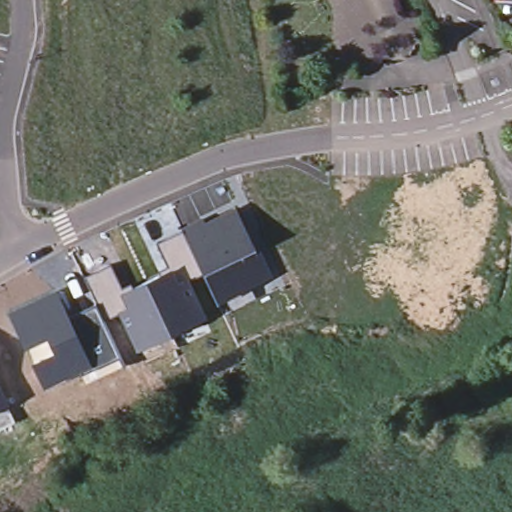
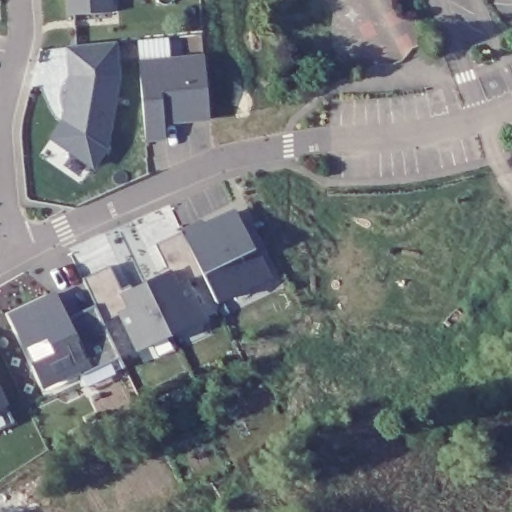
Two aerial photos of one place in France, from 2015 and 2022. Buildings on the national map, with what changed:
new [(112,11),(68,14),(68,0),(112,0),(112,11)]
new [(121,76),(109,148),(94,169),(49,137),(61,118),(68,74),(66,45),(117,40),(121,76)]
new [(164,123),(165,139),(145,141),(138,62),(203,57),(209,119),(187,121),(180,122),(164,123)]
unchanged [(70,313),(97,303),(86,276),(111,266),(121,287),(132,282),(135,286),(162,273),(160,268),(168,265),(156,238),(205,216),(207,219),(236,206),(256,248),(261,246),(275,275),(220,304),(203,274),(193,278),(209,317),(136,350),(117,312),(104,317),(120,358),(87,373),(85,367),(43,384),(31,361),(52,351),(46,337),(25,347),(7,309),(57,287),(70,313)]
unchanged [(13,401),(0,408),(0,376),(13,401)]

